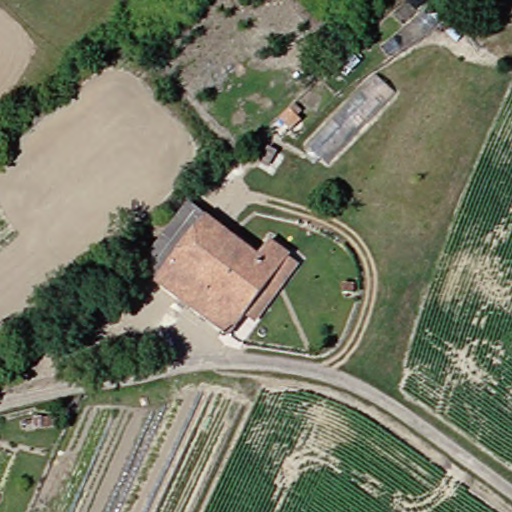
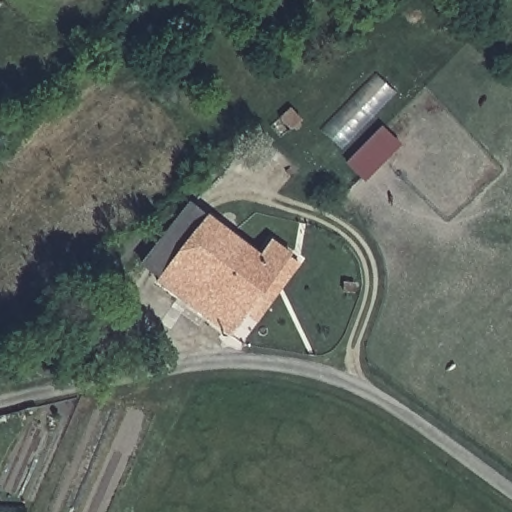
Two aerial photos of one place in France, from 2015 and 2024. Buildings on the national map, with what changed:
unchanged [(395,86),(324,162),(303,144),(378,69),(395,86)]
new [(385,127),(401,145),(366,180),(349,163),(385,127)]
unchanged [(245,302),(219,341),(167,301),(177,288),(161,275),(207,209),(262,245),(275,225),(279,228),(282,224),(290,230),(286,235),(290,239),(245,302)]
unchanged [(300,245),(256,310),(245,302),(290,239),(300,245)]

